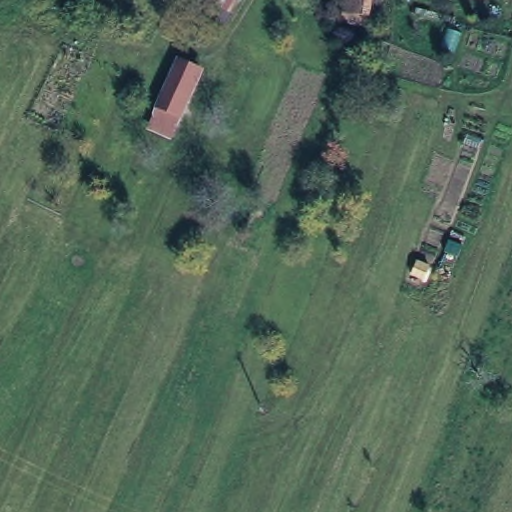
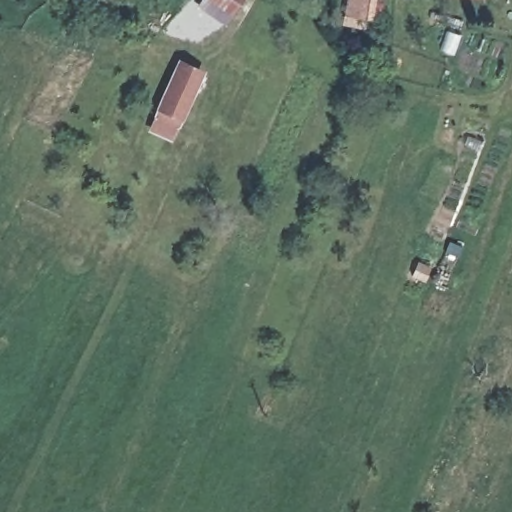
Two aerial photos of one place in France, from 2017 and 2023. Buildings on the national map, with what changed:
unchanged [(223,14),(200,0),(232,0),(223,14)]
unchanged [(333,20),(335,12),(340,13),(343,0),(376,0),(373,20),(356,16),(355,25),(333,20)]
unchanged [(203,78),(173,145),(142,134),(175,54),(203,78)]

